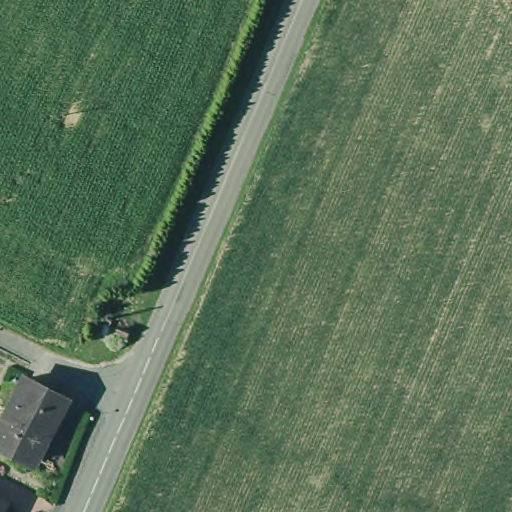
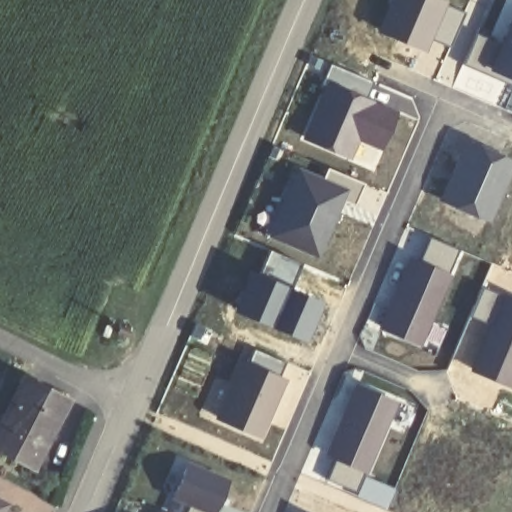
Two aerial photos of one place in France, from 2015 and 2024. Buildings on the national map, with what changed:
new [(431,39),(426,51),(376,29),(389,0),(443,0),(447,2),(464,11),(448,46),(431,39)]
new [(474,47),(478,49),(484,35),(496,42),(512,9),(512,81),(485,70),(462,64),(466,56),(471,59),(474,47)]
new [(324,73),(307,65),(311,54),(373,82),(367,96),(396,110),(379,151),(360,143),(352,160),(299,137),(323,77),(324,73)]
new [(512,158),(512,171),(489,222),(438,200),(465,137),(512,158)]
new [(294,164),(322,176),(327,166),(361,182),(353,204),(344,200),(319,258),(265,234),(294,164)]
new [(418,257),(428,235),(460,250),(450,272),(453,274),(434,320),(448,327),(439,348),(424,341),(422,347),(376,327),(409,253),(418,257)]
new [(269,325),(252,317),(233,310),(252,271),(258,272),(268,249),(299,263),(288,286),(323,303),(304,340),(269,325)]
new [(449,358),(467,315),(481,281),(489,262),(512,272),(512,290),(511,294),(512,295),(512,387),(469,368),(449,358)]
new [(237,362),(239,363),(241,360),(244,361),(251,347),(284,361),(279,374),(288,377),(263,438),(213,415),(237,362)]
unchanged [(74,401),(42,463),(1,441),(34,380),(74,401)]
new [(387,510),(356,493),(324,478),(333,458),(324,455),(356,381),(400,400),(368,475),(397,486),(387,510)]
new [(231,480),(217,512),(187,512),(188,506),(168,499),(186,460),(231,480)]
unchanged [(11,508),(9,512),(0,512),(0,502),(11,508)]
new [(308,512),(301,512),(302,510),(308,512)]

